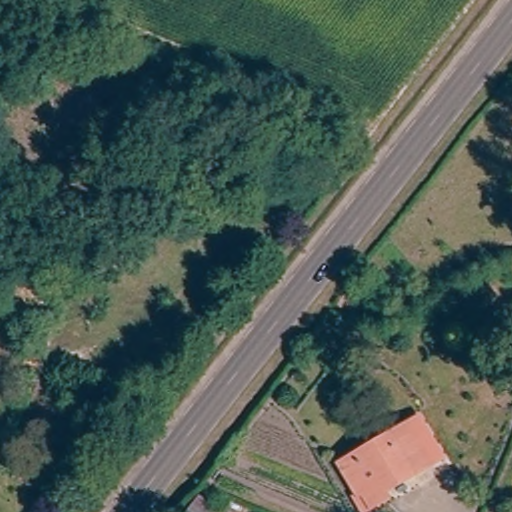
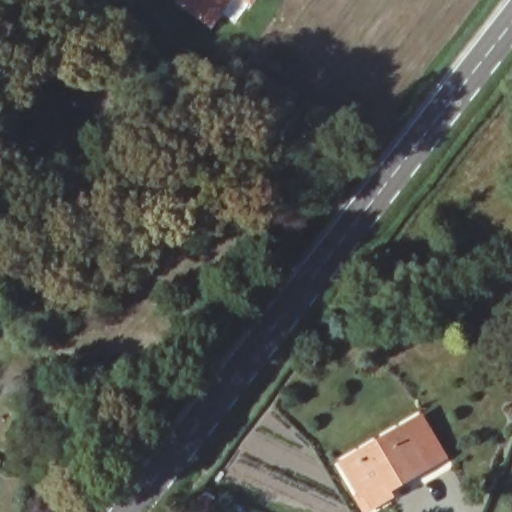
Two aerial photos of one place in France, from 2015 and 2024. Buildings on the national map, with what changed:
new [(254,0),(234,24),(223,15),(211,31),(173,3),(175,0),(254,0)]
unchanged [(407,466),(381,481),(388,493),(371,502),(363,489),(359,490),(342,459),(403,424),(419,415),(441,453),(425,463),(410,472),(407,466)]
unchanged [(200,495),(218,509),(216,512),(188,512),(200,495)]

